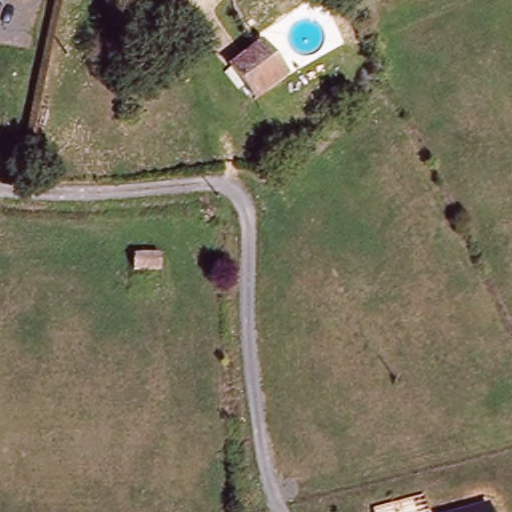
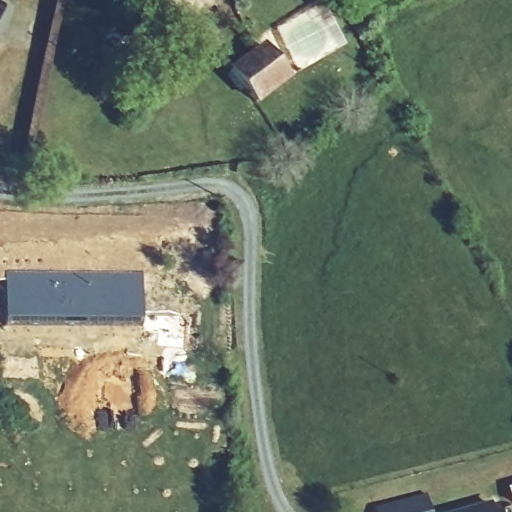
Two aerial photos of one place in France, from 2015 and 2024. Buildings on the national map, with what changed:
unchanged [(223,74),(255,47),(280,78),(247,104),(223,74)]
unchanged [(137,268),(137,254),(163,256),(163,270),(137,268)]
new [(141,271),(142,318),(5,320),(4,271),(141,271)]
unchanged [(487,505),(489,512),(459,512),(487,505)]

